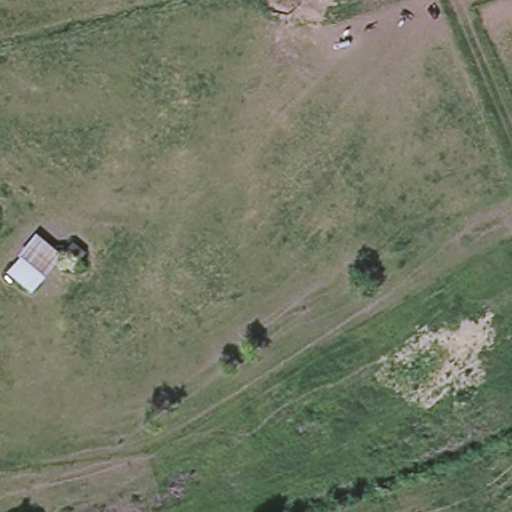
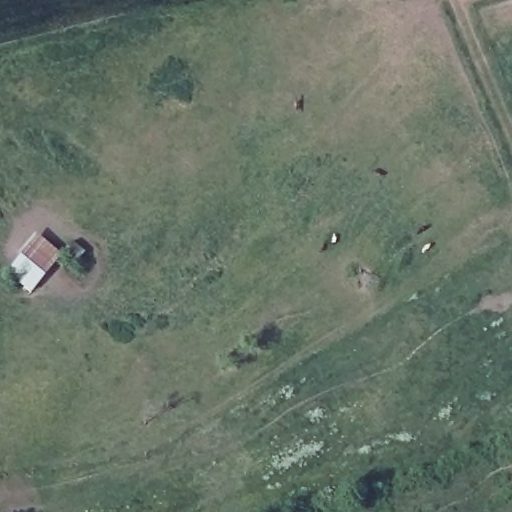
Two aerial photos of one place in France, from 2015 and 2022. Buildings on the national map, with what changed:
unchanged [(31,293),(6,267),(37,222),(65,251),(31,293)]

